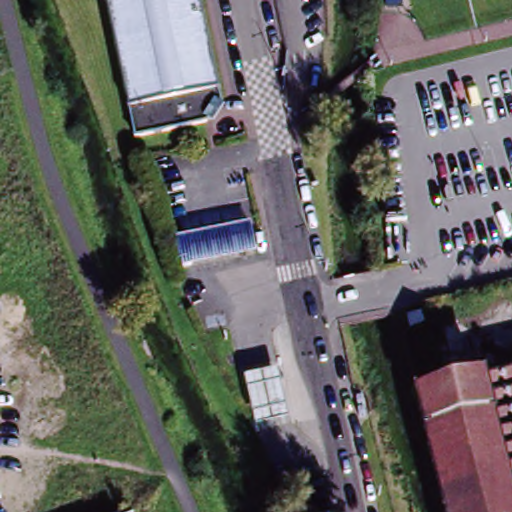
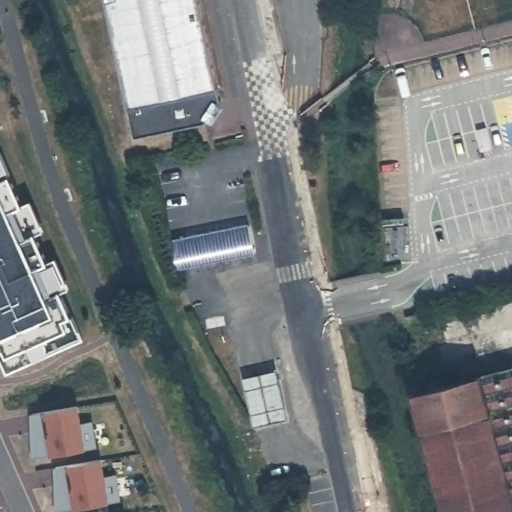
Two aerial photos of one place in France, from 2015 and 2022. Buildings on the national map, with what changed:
unchanged [(221,107),(207,127),(135,142),(106,0),(199,0),(221,107)]
new [(22,205),(32,201),(45,230),(35,234),(47,262),(57,258),(70,287),(60,292),(72,316),(81,336),(82,340),(7,372),(0,359),(0,155),(10,176),(22,205)]
unchanged [(425,328),(412,332),(408,322),(423,319),(425,328)]
unchanged [(444,512),(414,393),(512,369),(512,512),(444,512)]
unchanged [(256,428),(245,380),(279,372),(289,422),(256,428)]
new [(98,447),(86,449),(50,456),(31,459),(30,414),(43,412),(80,406),(82,422),(94,421),(98,447)]
new [(122,501),(110,502),(75,508),(55,511),(53,467),(67,465),(103,459),(105,475),(117,473),(122,501)]

